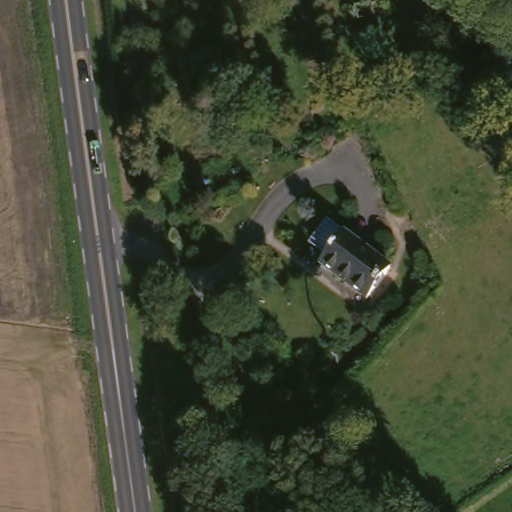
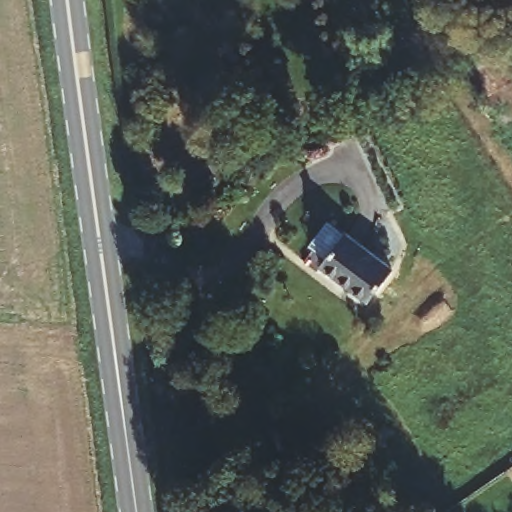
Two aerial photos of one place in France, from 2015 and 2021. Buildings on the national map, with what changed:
unchanged [(353,233),(402,271),(373,305),(325,270),(353,233)]

